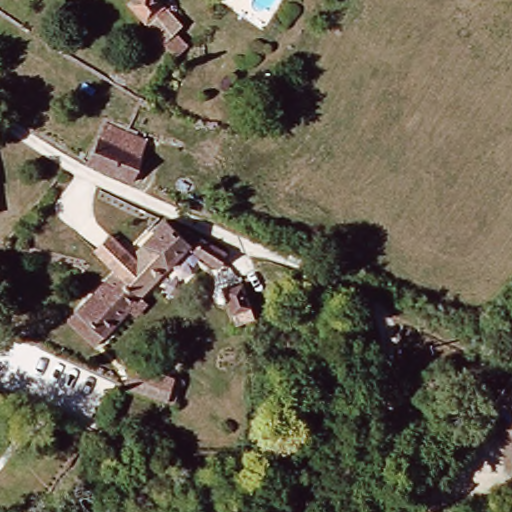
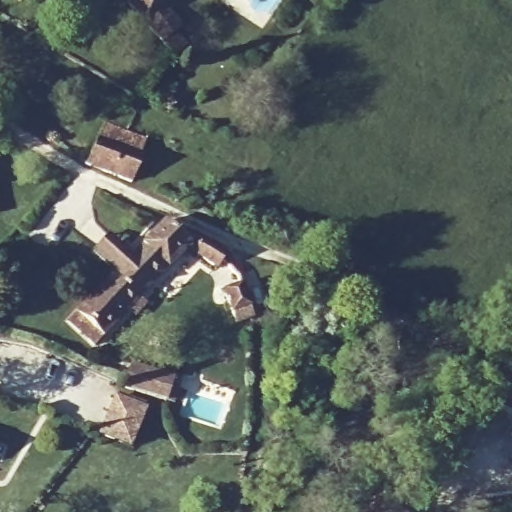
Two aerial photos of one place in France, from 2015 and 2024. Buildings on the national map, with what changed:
unchanged [(182,57),(137,8),(141,1),(140,0),(164,0),(202,39),(182,57)]
unchanged [(110,122),(152,140),(134,182),(89,162),(110,122)]
unchanged [(184,257),(94,346),(70,321),(160,232),(184,257)]
unchanged [(219,262),(209,277),(187,259),(196,249),(219,262)]
unchanged [(141,370),(177,381),(171,402),(132,391),(133,387),(141,370)]
unchanged [(502,404),(512,387),(512,410),(502,404)]
new [(114,396),(147,409),(130,450),(97,437),(114,396)]

